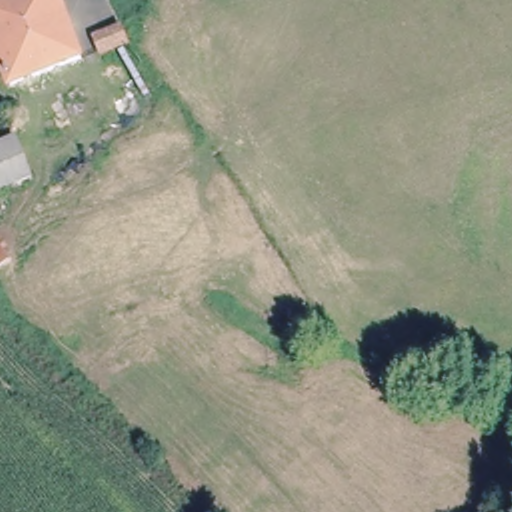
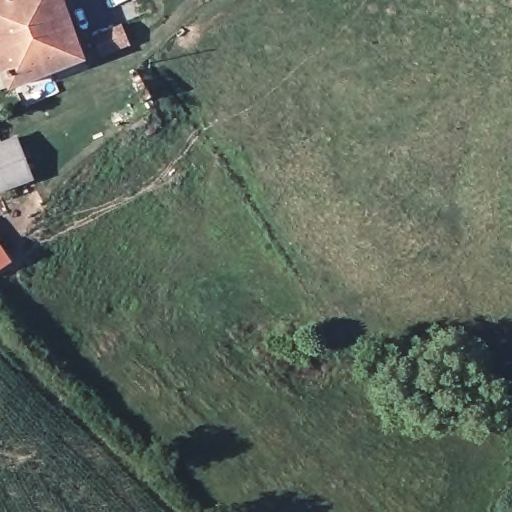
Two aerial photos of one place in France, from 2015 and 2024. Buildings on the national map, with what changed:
unchanged [(84,53),(9,82),(0,58),(0,0),(63,0),(84,53)]
unchanged [(114,26),(129,21),(138,39),(123,43),(114,26)]
unchanged [(29,179),(0,190),(0,141),(14,136),(29,179)]
unchanged [(14,258),(0,267),(0,239),(14,258)]

